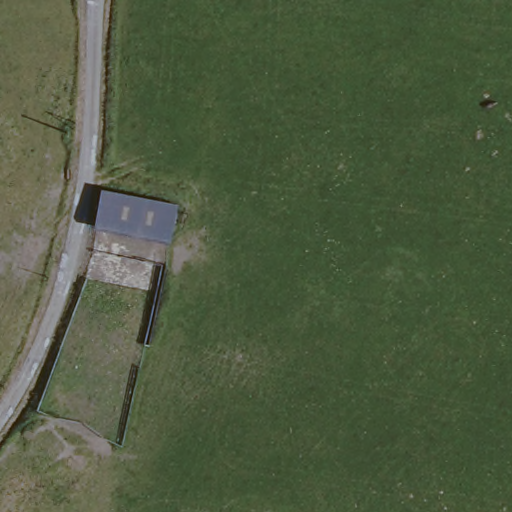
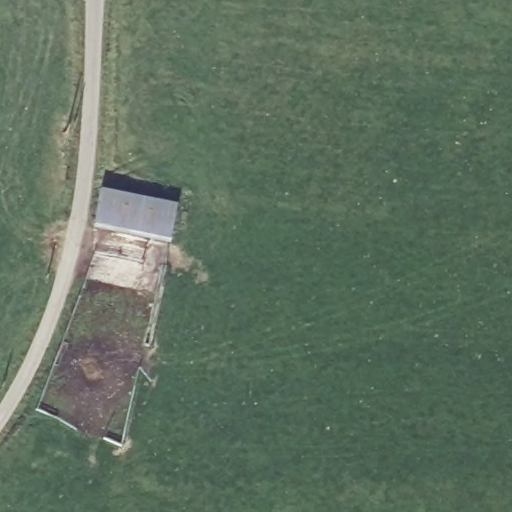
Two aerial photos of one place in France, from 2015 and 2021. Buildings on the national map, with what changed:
unchanged [(180,202),(172,238),(98,225),(104,190),(180,202)]

